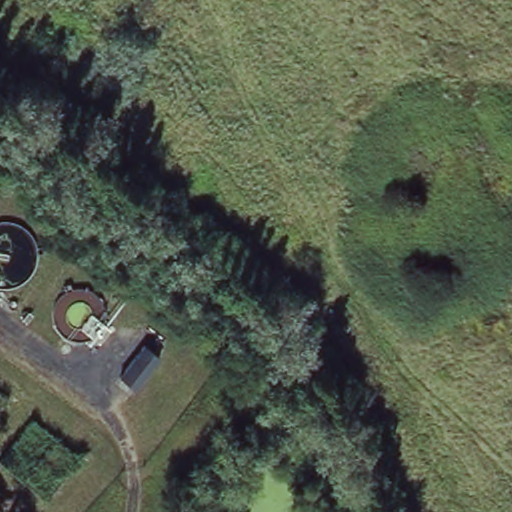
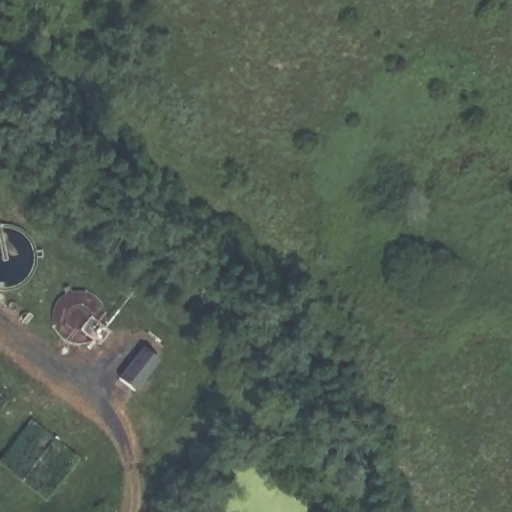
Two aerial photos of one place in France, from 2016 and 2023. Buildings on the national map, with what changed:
unchanged [(147,348),(161,358),(140,390),(124,378),(147,348)]

